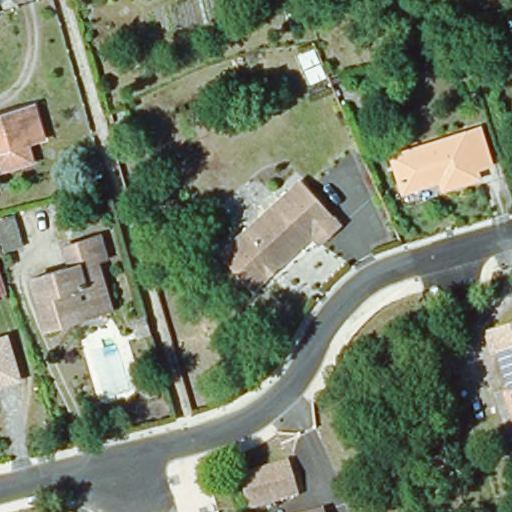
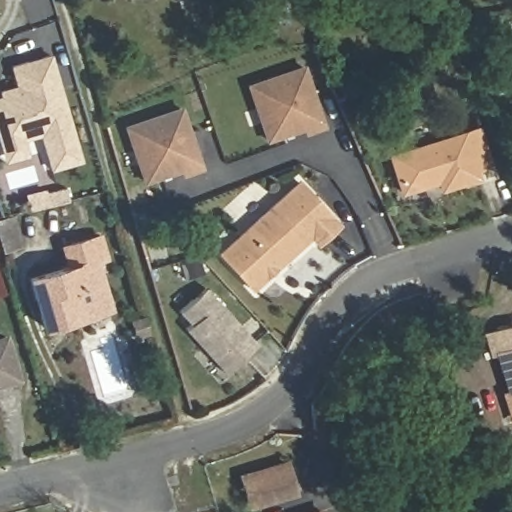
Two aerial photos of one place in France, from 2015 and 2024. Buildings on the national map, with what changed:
new [(49,170),(39,137),(26,140),(28,154),(4,163),(0,150),(0,89),(14,84),(9,65),(50,53),(82,161),(49,170)]
new [(304,66),(325,128),(306,134),(304,129),(268,141),(247,85),(304,66)]
demolished [(48,142),(33,146),(38,166),(0,174),(0,111),(34,99),(48,142)]
new [(144,183),(124,126),(181,106),(203,169),(183,176),(181,170),(144,183)]
unchanged [(479,128),(490,163),(475,168),(478,177),(442,188),(439,180),(402,191),(391,156),(479,128)]
unchanged [(300,184),(336,225),(317,243),(311,237),(254,288),(223,253),(300,184)]
new [(23,247),(2,253),(0,246),(0,219),(14,215),(23,247)]
unchanged [(67,323),(46,329),(32,280),(71,268),(64,248),(101,237),(107,259),(98,262),(108,296),(112,310),(67,323)]
unchanged [(9,295),(0,298),(0,273),(9,295)]
new [(227,375),(185,329),(190,324),(179,312),(205,286),(259,344),(227,375)]
unchanged [(491,352),(485,333),(512,324),(512,421),(502,390),(508,389),(495,350),(491,352)]
unchanged [(20,379),(0,385),(0,340),(8,337),(20,379)]
unchanged [(282,470),(290,498),(247,511),(238,482),(282,470)]

